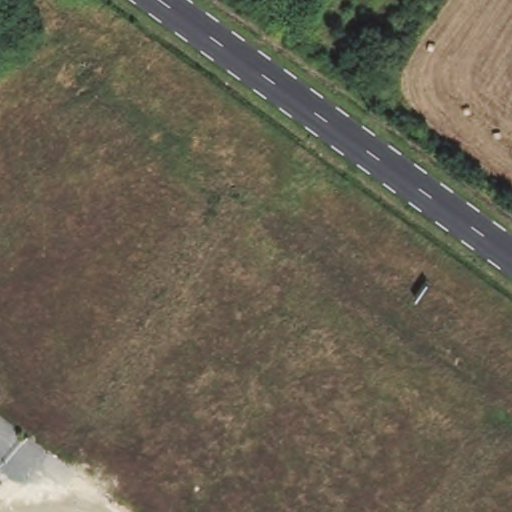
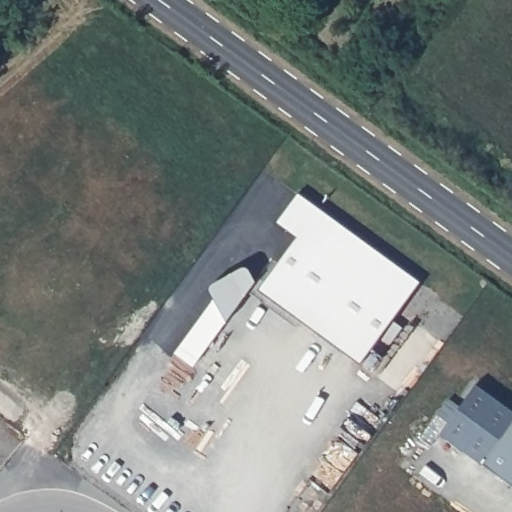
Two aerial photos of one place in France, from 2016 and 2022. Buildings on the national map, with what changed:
new [(297,237),(276,222),(297,194),(419,285),(361,365),(258,290),(297,237)]
new [(474,385),(512,412),(512,487),(439,433),(474,385)]

